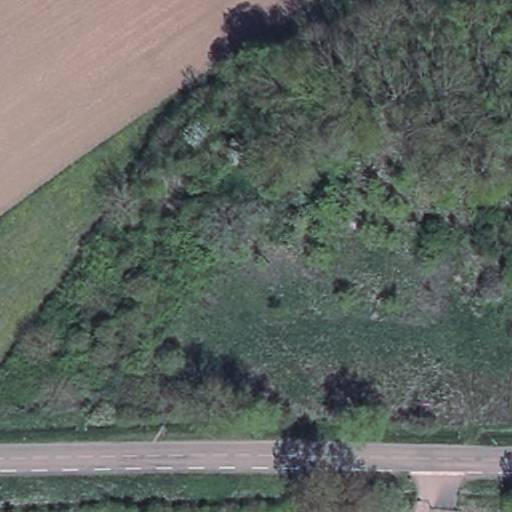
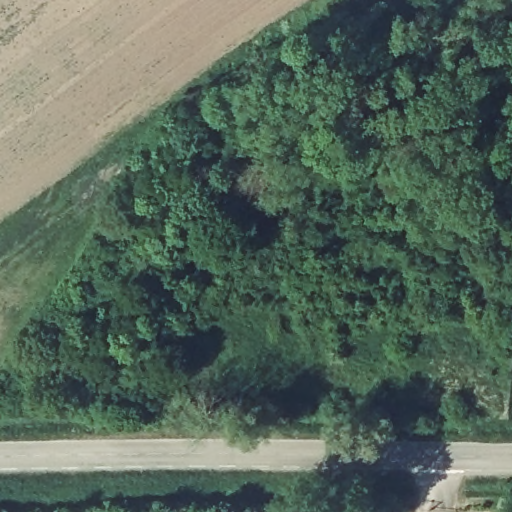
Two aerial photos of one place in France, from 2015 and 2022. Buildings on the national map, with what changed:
[]

